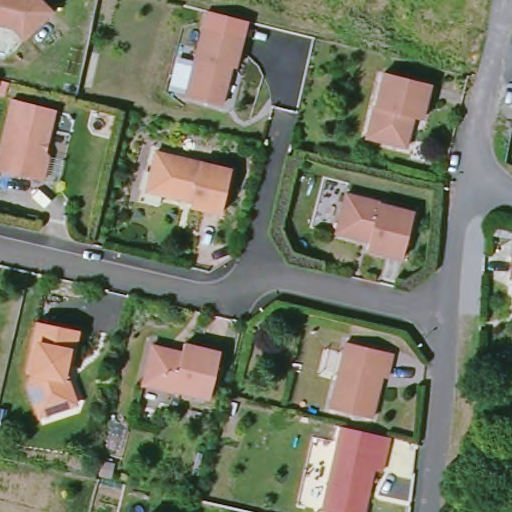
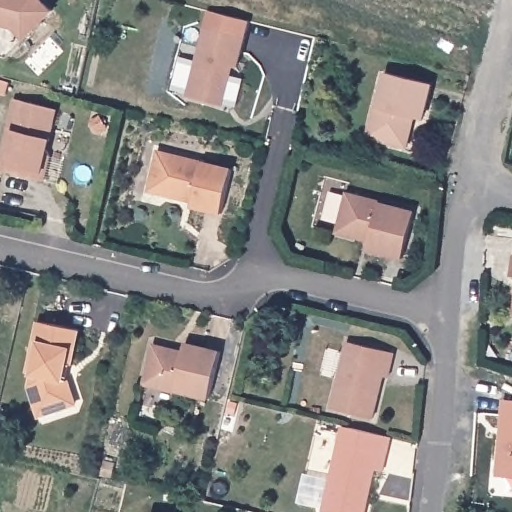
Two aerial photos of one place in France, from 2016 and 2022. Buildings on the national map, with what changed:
unchanged [(28,32),(17,21),(0,17),(0,0),(43,0),(53,9),(28,32)]
unchanged [(196,25),(236,35),(218,107),(178,99),(196,25)]
unchanged [(381,67),(433,82),(423,117),(406,114),(404,122),(410,124),(404,147),(364,135),(381,67)]
unchanged [(46,146),(49,147),(40,182),(0,173),(0,153),(12,102),(54,112),(46,146)]
unchanged [(146,174),(151,150),(228,170),(217,216),(186,207),(188,202),(182,199),(181,205),(158,199),(141,195),(146,174)]
unchanged [(410,209),(399,257),(364,247),(366,235),(361,232),(359,237),(330,231),(341,191),(410,209)]
unchanged [(36,403),(30,381),(33,372),(28,370),(43,317),(83,327),(79,350),(66,353),(63,373),(68,372),(76,410),(58,414),(40,418),(36,403)]
unchanged [(342,337),(391,351),(386,371),(379,370),(368,418),(324,407),(342,337)]
unchanged [(145,344),(169,350),(168,356),(175,357),(178,345),(213,353),(203,401),(138,386),(145,344)]
new [(497,400),(512,401),(512,476),(492,475),(497,400)]
unchanged [(378,481),(369,480),(364,502),(360,502),(358,507),(361,510),(361,512),(318,512),(338,435),(362,440),(386,446),(378,481)]

